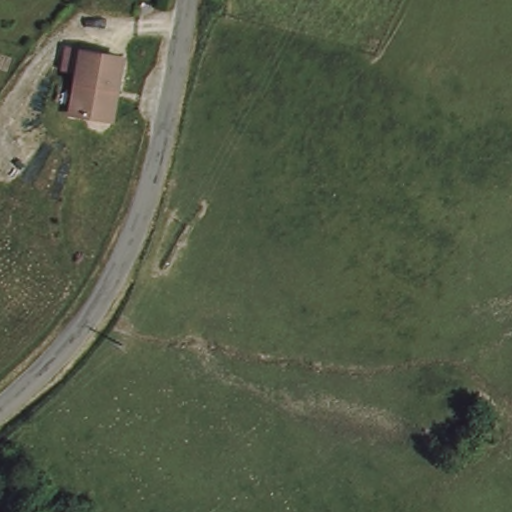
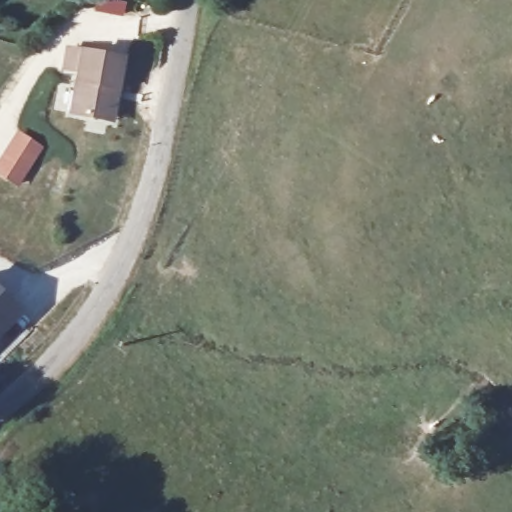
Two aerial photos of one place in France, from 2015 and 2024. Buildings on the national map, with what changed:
unchanged [(104,118),(69,109),(85,47),(125,57),(117,87),(109,119),(104,118)]
new [(17,131),(44,147),(19,187),(0,175),(0,157),(17,131)]
new [(23,313),(0,336),(0,291),(23,313)]

